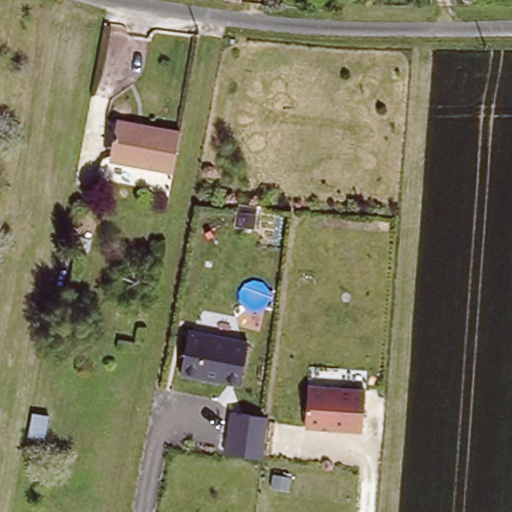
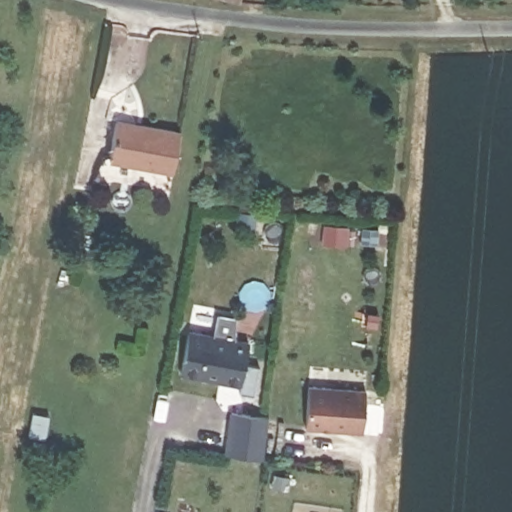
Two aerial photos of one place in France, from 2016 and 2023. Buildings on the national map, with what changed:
unchanged [(171,180),(111,169),(118,130),(178,141),(171,180)]
unchanged [(188,331),(246,342),(238,385),(180,374),(188,331)]
unchanged [(307,386),(365,388),(363,429),(305,426),(307,386)]
unchanged [(230,410),(267,415),(262,458),(225,453),(230,410)]

